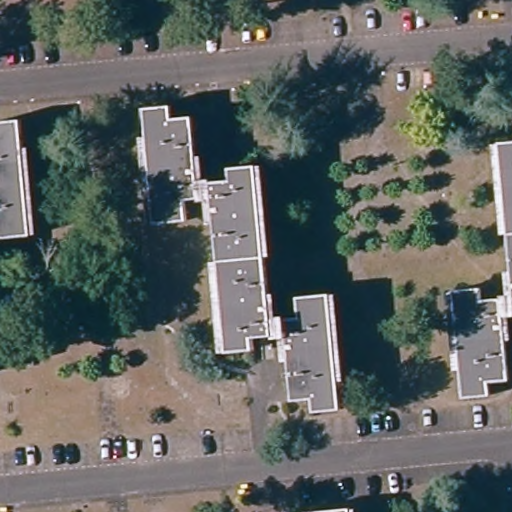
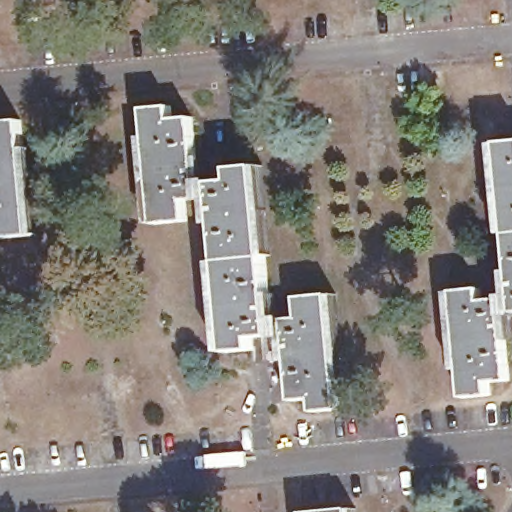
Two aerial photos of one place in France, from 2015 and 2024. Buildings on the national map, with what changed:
unchanged [(146,102),(172,100),(175,113),(195,111),(202,192),(182,194),(184,213),(155,217),(146,102)]
unchanged [(5,237),(1,217),(0,217),(0,120),(26,118),(35,234),(5,237)]
unchanged [(512,248),(502,141),(512,140),(512,248)]
unchanged [(214,177),(232,174),(230,161),(260,157),(276,330),(257,331),(256,343),(229,347),(214,177)]
unchanged [(481,285),(483,296),(504,295),(511,375),(491,377),(492,391),(464,393),(455,287),(481,285)]
unchanged [(286,316),(300,314),(298,293),(332,289),(343,401),(308,406),(307,393),(292,395),(286,316)]
unchanged [(355,508),(356,512),(307,512),(306,512),(355,508)]

